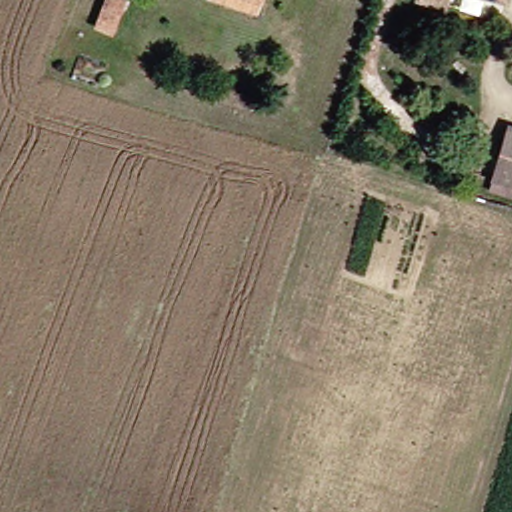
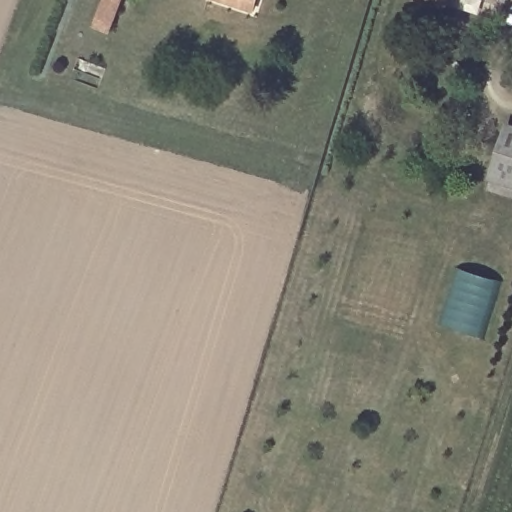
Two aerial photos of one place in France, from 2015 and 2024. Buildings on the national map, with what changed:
unchanged [(89,2),(85,0),(104,0),(102,6),(89,2)]
new [(97,30),(92,28),(103,0),(122,0),(109,34),(97,30)]
unchanged [(248,0),(244,10),(215,0),(248,0)]
unchanged [(490,176),(507,122),(512,124),(512,183),(490,176)]
new [(499,278),(482,337),(442,326),(460,268),(499,278)]

